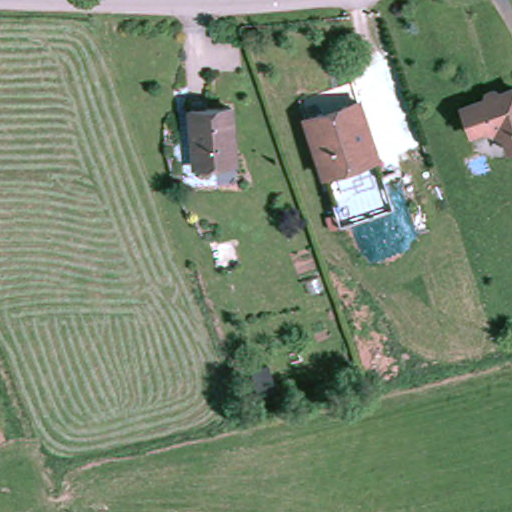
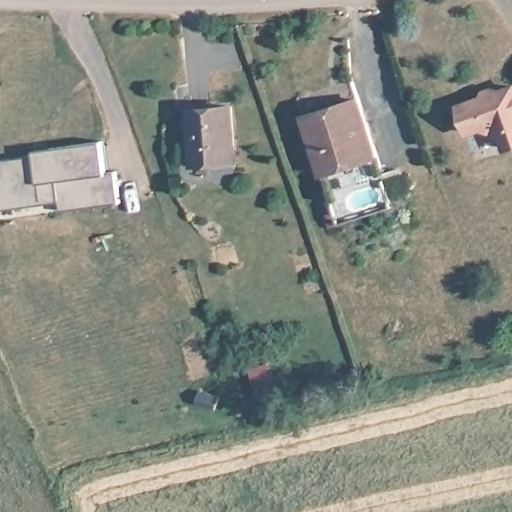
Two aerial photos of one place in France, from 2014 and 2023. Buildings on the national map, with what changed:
unchanged [(509,139),(498,134),(497,130),(481,136),(470,110),(493,102),(495,96),(505,94),(510,97),(512,96),(512,137),(509,139)]
unchanged [(333,178),(314,120),(331,115),(340,112),(351,109),(368,103),(386,161),(371,165),(350,172),(333,178)]
unchanged [(204,167),(200,115),(241,112),(245,165),(204,167)]
new [(120,201),(63,209),(62,200),(0,208),(0,159),(38,154),(37,149),(103,139),(106,172),(117,170),(120,201)]
unchanged [(259,373),(276,372),(279,397),(262,398),(259,373)]

